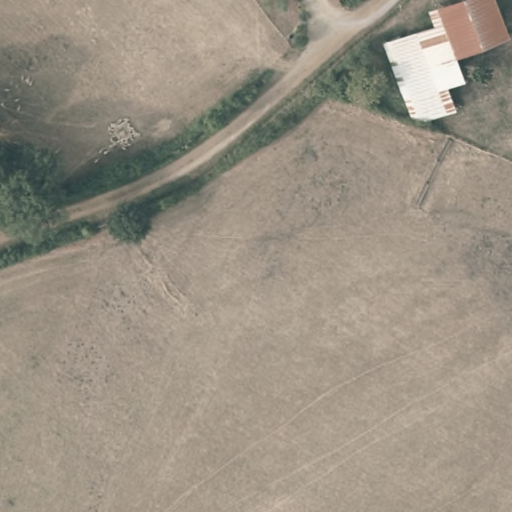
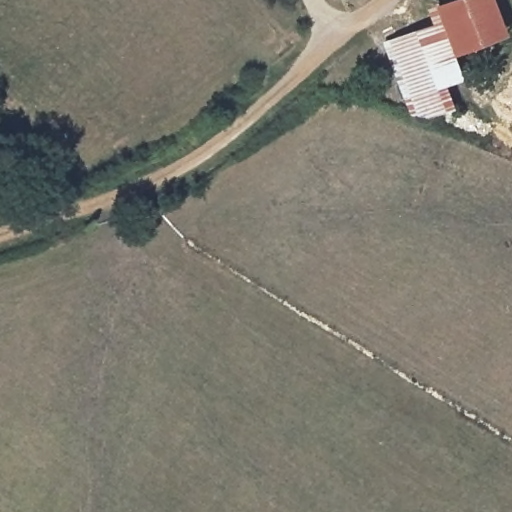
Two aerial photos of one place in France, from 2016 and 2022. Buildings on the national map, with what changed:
unchanged [(428,2),(435,0),(500,0),(511,36),(459,54),(466,76),(451,83),(459,107),(417,124),(381,38),(434,20),(428,2)]

